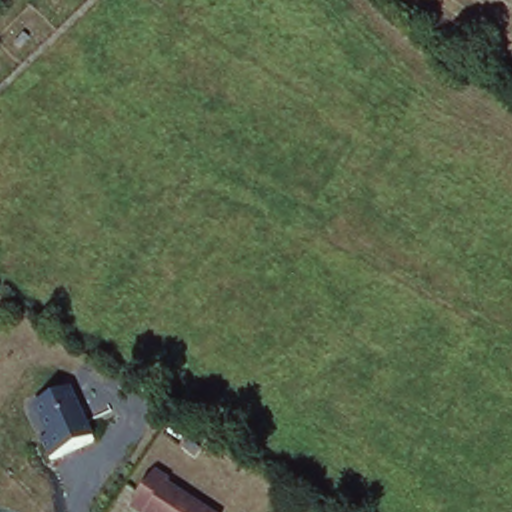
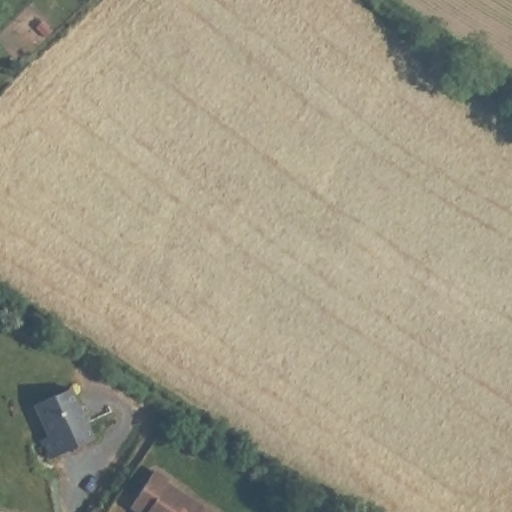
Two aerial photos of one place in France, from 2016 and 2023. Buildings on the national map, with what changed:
unchanged [(43,438),(50,435),(37,401),(74,390),(92,436),(51,456),(43,438)]
unchanged [(147,470),(162,480),(160,483),(210,512),(134,512),(126,507),(147,470)]

